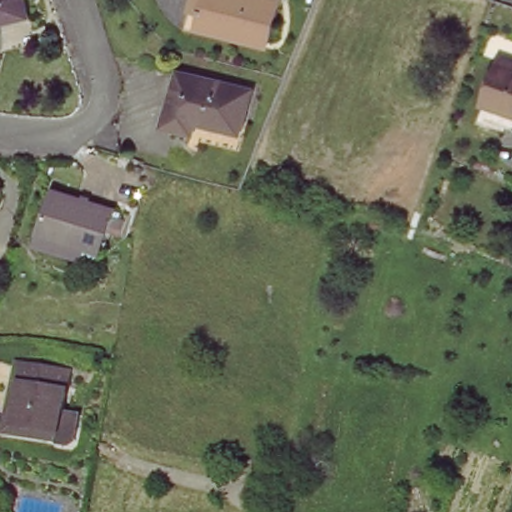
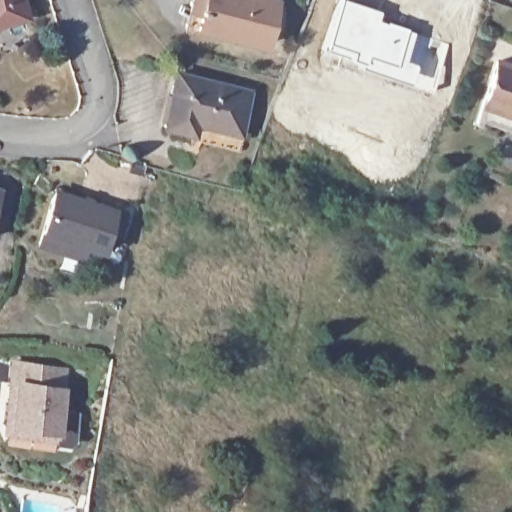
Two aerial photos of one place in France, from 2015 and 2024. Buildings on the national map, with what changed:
unchanged [(27,16),(0,23),(0,0),(23,0),(27,16)]
unchanged [(271,50),(200,32),(191,30),(198,0),(268,0),(283,4),(271,50)]
new [(337,0),(352,0),(380,10),(378,17),(449,43),(439,76),(430,74),(433,57),(425,54),(412,85),(360,68),(362,64),(320,49),(337,0)]
unchanged [(478,121),(495,74),(500,57),(512,61),(512,127),(487,119),(485,124),(478,121)]
unchanged [(163,125),(177,71),(249,90),(238,132),(235,149),(192,139),(193,133),(163,125)]
unchanged [(63,252),(37,244),(55,189),(114,210),(101,251),(83,246),(80,258),(63,252)]
unchanged [(7,379),(9,360),(62,368),(56,410),(73,412),(69,440),(64,444),(55,443),(51,440),(0,431),(0,420),(3,400),(7,379)]

